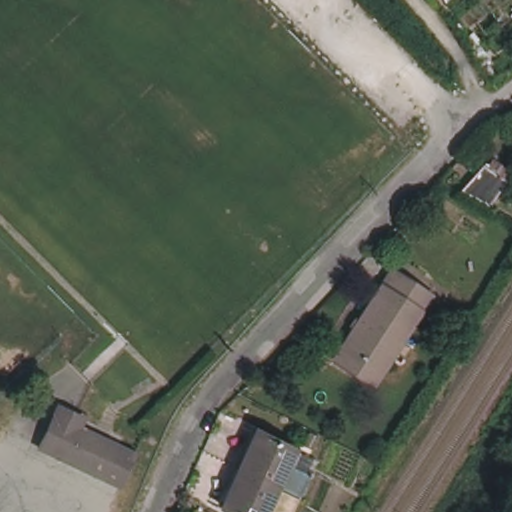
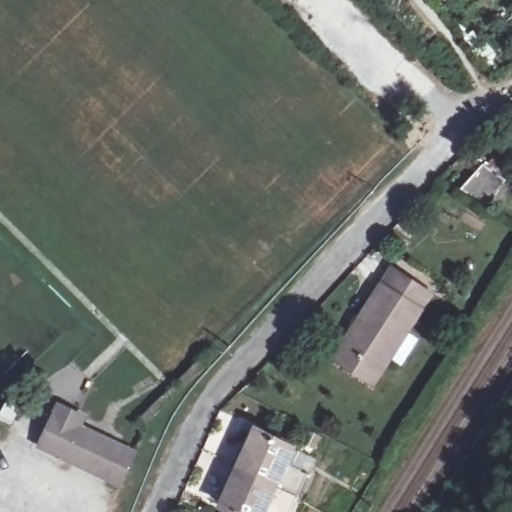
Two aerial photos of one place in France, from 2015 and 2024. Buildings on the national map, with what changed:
unchanged [(462,193),(481,168),(485,171),(492,160),(507,170),(502,181),(487,207),(462,193)]
unchanged [(335,358),(344,346),(397,270),(432,294),(380,371),(372,383),(335,358)]
unchanged [(121,482),(39,445),(53,412),(57,403),(86,416),(81,425),(135,451),(121,482)]
unchanged [(214,511),(232,470),(241,451),(242,450),(250,432),(290,450),(297,453),(290,468),(308,475),(297,500),(280,492),(279,495),(271,512),(217,512),(214,511)]
unchanged [(310,453),(298,447),(305,433),(317,440),(310,453)]

